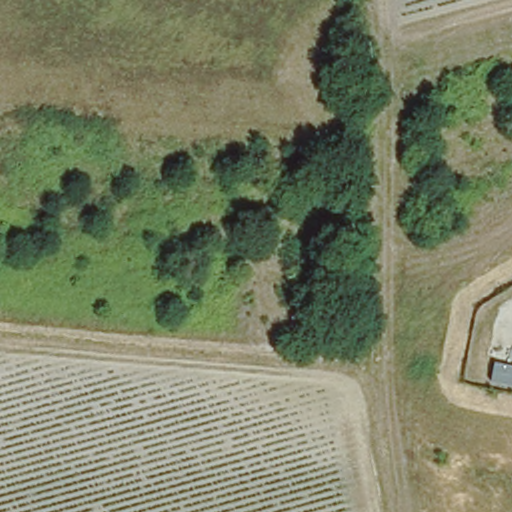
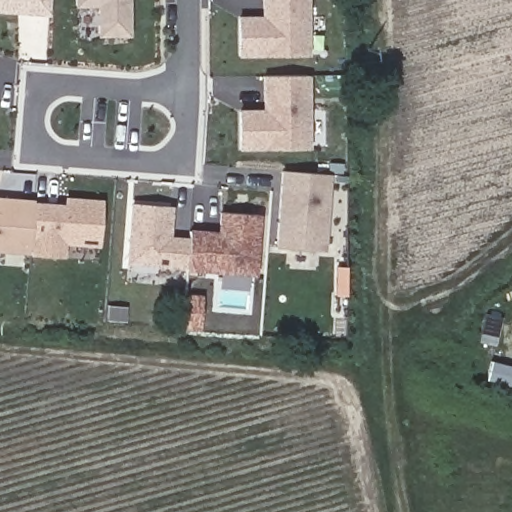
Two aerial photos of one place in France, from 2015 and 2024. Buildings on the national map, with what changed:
new [(46,15),(0,12),(0,0),(47,0),(46,15)]
new [(126,35),(96,36),(96,6),(73,6),(73,0),(126,0),(126,35)]
new [(234,19),(259,18),(258,0),(302,0),(302,55),(234,56),(234,19)]
new [(235,113),(259,113),(259,76),(303,76),(303,149),(235,150),(235,113)]
new [(280,172),(327,175),(322,238),(315,247),(312,250),(311,251),(274,249),(280,172)]
new [(30,199),(26,248),(0,247),(0,195),(30,197),(30,199)]
new [(26,248),(30,199),(69,202),(69,195),(99,198),(94,256),(58,253),(57,268),(25,265),(26,248)]
new [(188,264),(131,260),(136,202),(174,205),(172,235),(190,237),(188,264)]
new [(256,271),(188,266),(191,228),(221,230),(223,209),(260,212),(256,271)]
new [(200,323),(184,322),(186,295),(202,296),(200,323)]

